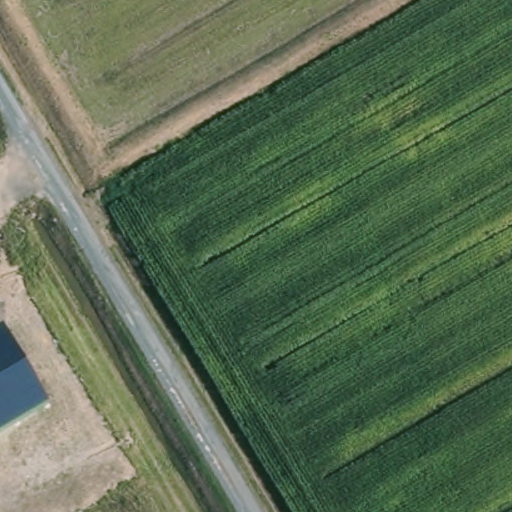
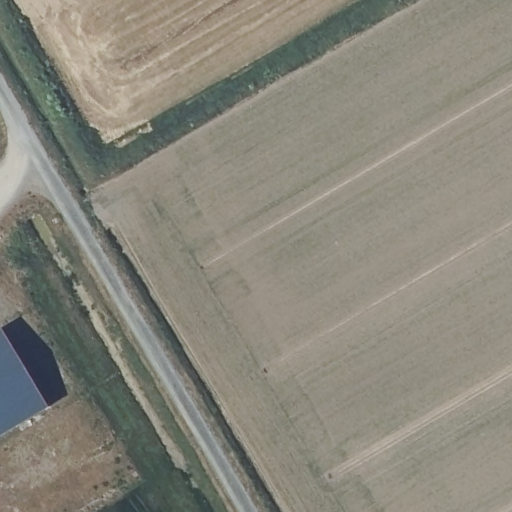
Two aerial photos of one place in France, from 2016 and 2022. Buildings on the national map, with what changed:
unchanged [(0,435),(0,331),(2,330),(47,407),(0,435)]

